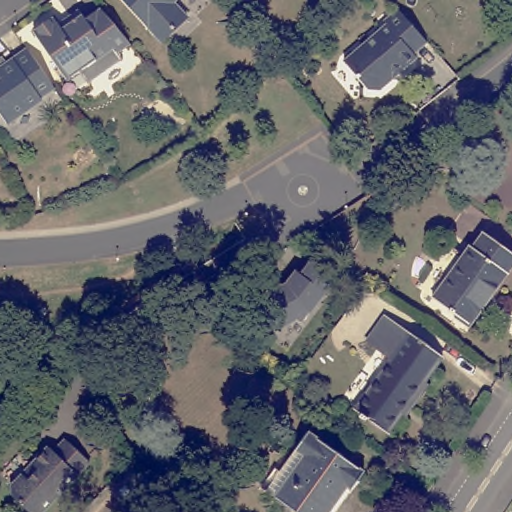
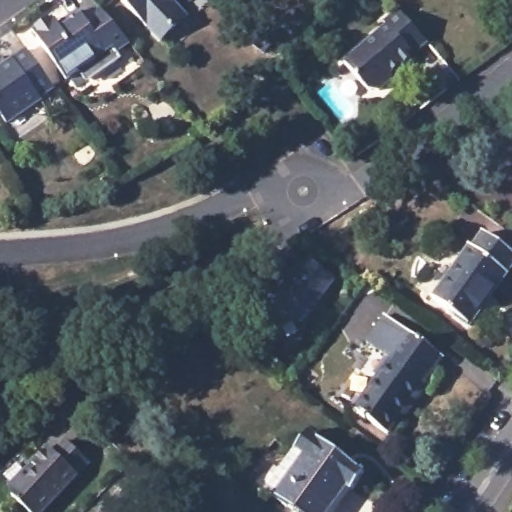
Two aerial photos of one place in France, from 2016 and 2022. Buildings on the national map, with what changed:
unchanged [(184,20),(159,47),(114,0),(177,0),(170,7),(184,20)]
unchanged [(113,55),(115,59),(114,66),(88,83),(80,81),(75,74),(62,81),(51,64),(51,56),(45,55),(34,37),(36,30),(47,22),(55,24),(56,26),(68,20),(78,13),(84,22),(100,11),(129,45),(113,55)]
unchanged [(424,47),(411,60),(415,63),(401,75),(398,71),(390,77),(390,85),(377,96),(367,95),(342,67),(384,30),(382,27),(395,15),(424,47)]
unchanged [(51,87),(23,106),(24,109),(4,124),(0,118),(0,57),(4,64),(25,50),(45,80),(51,87)]
unchanged [(479,241),(481,243),(492,227),(512,241),(512,272),(478,319),(442,293),(479,241)]
unchanged [(281,306),(279,301),(287,297),(294,289),(292,287),(302,275),(306,278),(317,265),(340,283),(306,326),(301,323),(278,335),(267,314),(281,306)]
unchanged [(390,437),(371,423),(369,425),(363,421),(365,418),(359,413),(394,365),(370,347),(389,321),(445,361),(427,386),(431,390),(415,412),(407,423),(403,420),(390,437)]
unchanged [(275,486),(317,428),(371,468),(358,485),(354,483),(334,512),(311,512),(275,486)]
unchanged [(6,503),(6,493),(16,482),(26,471),(41,453),(47,458),(58,446),(82,467),(43,512),(16,512),(6,503)]

